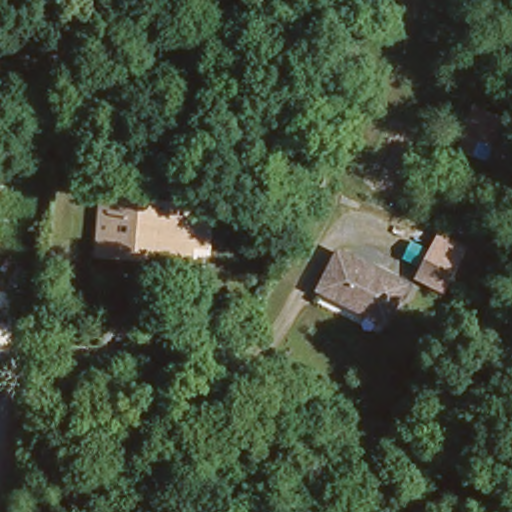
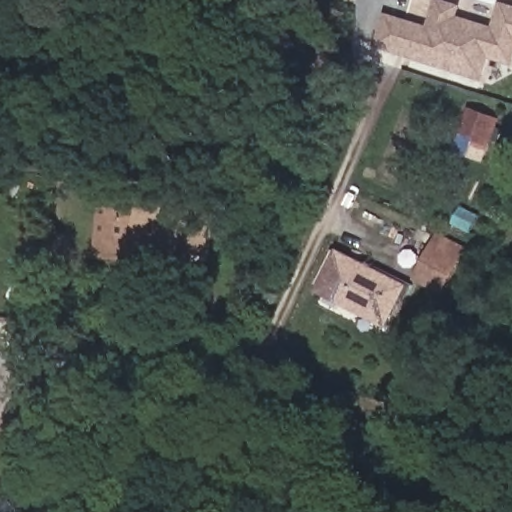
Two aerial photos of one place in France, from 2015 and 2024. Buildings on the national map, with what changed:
new [(430,24),(439,0),(449,0),(465,5),(462,15),(497,26),(504,2),(512,4),(512,64),(495,60),(488,80),(378,47),(388,12),(430,24)]
new [(458,150),(472,107),(505,119),(488,161),(458,150)]
unchanged [(451,160),(424,151),(438,112),(466,121),(451,160)]
unchanged [(120,245),(110,245),(114,190),(124,190),(205,197),(218,199),(214,236),(201,235),(200,244),(199,252),(146,247),(120,245)]
unchanged [(408,268),(430,229),(465,247),(439,286),(408,268)]
unchanged [(310,287),(341,241),(412,279),(386,318),(310,287)]

